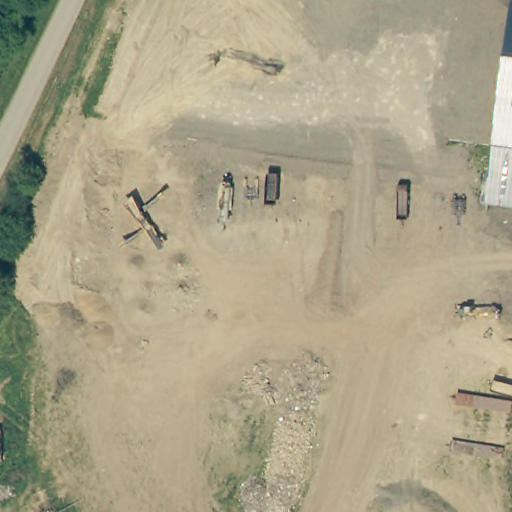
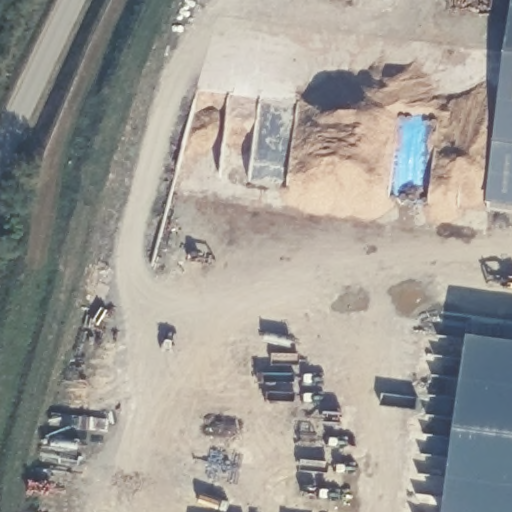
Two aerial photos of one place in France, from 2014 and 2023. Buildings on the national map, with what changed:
unchanged [(495,144),(512,15),(512,206),(487,203),(495,144)]
new [(470,338),(512,344),(512,512),(448,512),(470,338)]

